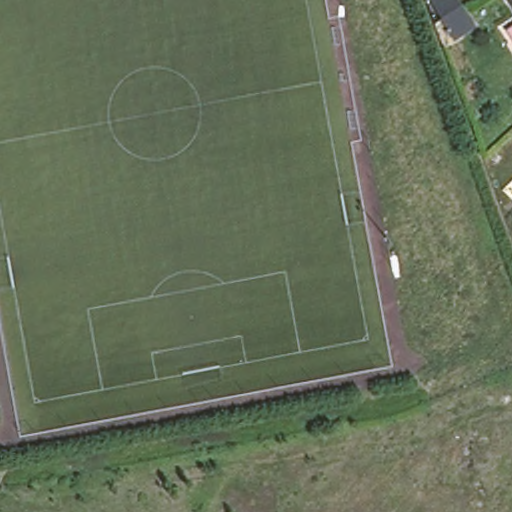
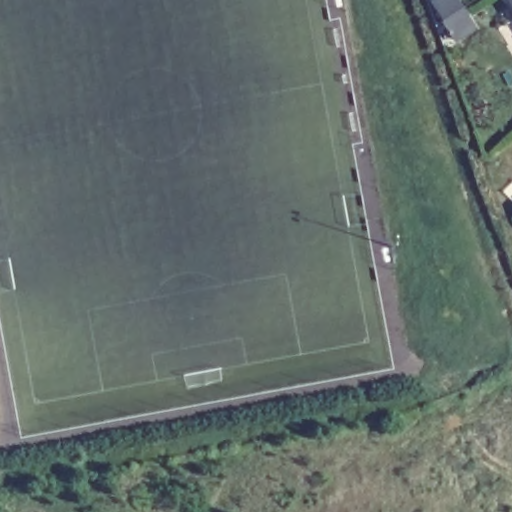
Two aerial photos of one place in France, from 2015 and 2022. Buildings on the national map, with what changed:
unchanged [(457,44),(429,2),(432,0),(456,0),(476,30),(457,44)]

